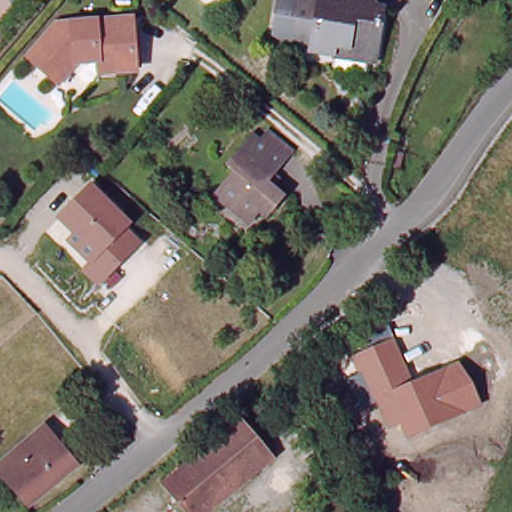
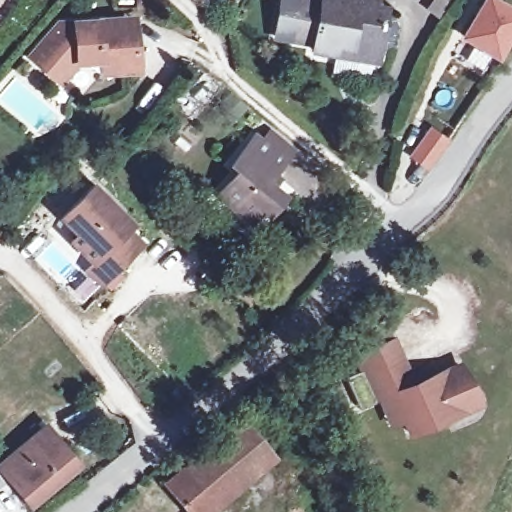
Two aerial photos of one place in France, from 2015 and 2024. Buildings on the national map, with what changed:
unchanged [(326,51),(326,44),(306,41),(288,39),(293,0),(380,0),(380,4),(396,7),(392,38),(386,38),(386,49),(385,59),(349,55),(326,51)]
new [(512,6),(512,33),(496,60),(491,56),(482,71),(464,59),(472,45),(459,37),(481,0),(502,0),(512,6)]
unchanged [(96,62),(74,63),(57,83),(26,58),(55,24),(94,21),(131,18),(131,26),(135,71),(116,73),(96,74),(96,62)]
unchanged [(267,206),(261,213),(246,200),(242,206),(224,190),(244,167),(236,161),(260,132),(268,139),(277,128),(299,146),(290,157),(273,178),(291,192),(279,206),(273,212),(267,206)]
unchanged [(112,277),(98,262),(91,269),(72,251),(79,244),(60,225),(90,194),(116,220),(127,231),(123,236),(137,251),(112,277)]
unchanged [(408,440),(400,424),(389,429),(376,401),(358,409),(345,379),(360,373),(352,355),(364,350),(358,334),(389,323),(414,381),(459,362),(482,407),(408,440)]
unchanged [(244,419),(277,457),(220,505),(187,466),(244,419)]
unchanged [(49,425),(81,462),(32,504),(0,468),(0,467),(49,425)]
unchanged [(211,512),(191,512),(167,483),(187,466),(220,505),(211,512)]

